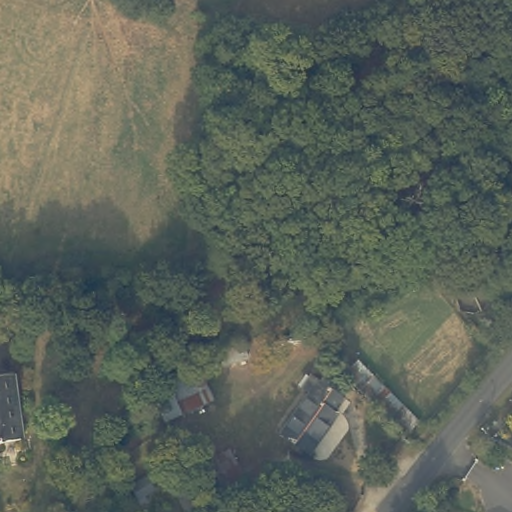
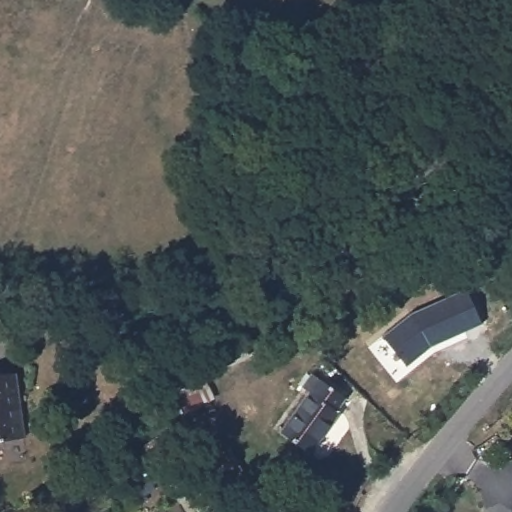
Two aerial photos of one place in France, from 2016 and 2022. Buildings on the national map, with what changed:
new [(431,346),(406,366),(383,337),(411,313),(467,289),(483,323),(431,346)]
unchanged [(234,350),(236,357),(248,352),(253,366),(209,385),(218,408),(181,423),(164,380),(234,350)]
unchanged [(18,436),(0,438),(0,366),(8,364),(18,436)]
unchanged [(333,414),(337,417),(308,452),(283,432),(311,397),(306,393),(316,379),(334,393),(338,388),(347,396),(333,414)]
unchanged [(235,451),(266,503),(255,510),(253,512),(238,512),(212,464),(235,451)]

